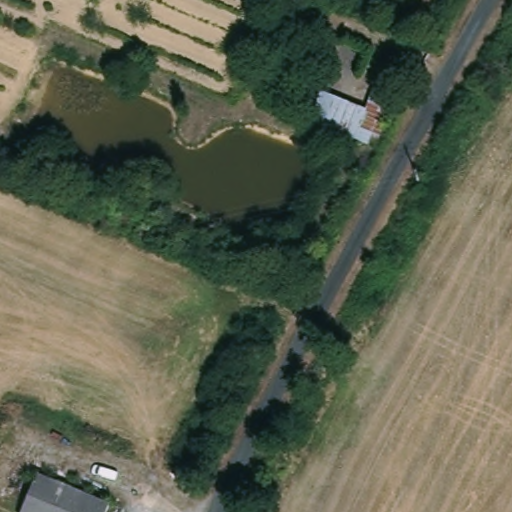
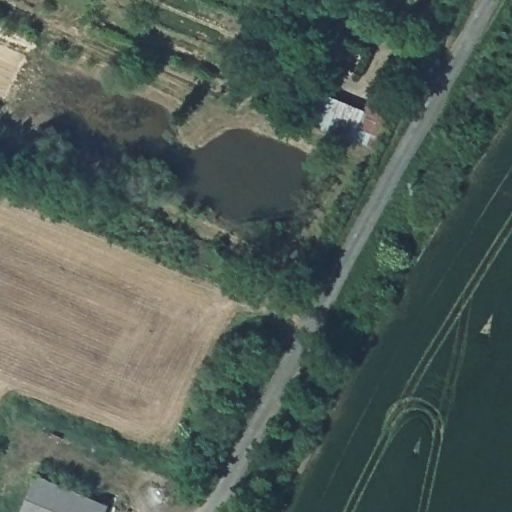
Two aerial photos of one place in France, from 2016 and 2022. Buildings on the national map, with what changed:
unchanged [(320,126),(322,124),(305,116),(315,91),(360,109),(369,87),(393,97),(371,148),(320,126)]
unchanged [(22,512),(37,474),(109,504),(106,512),(22,512)]

